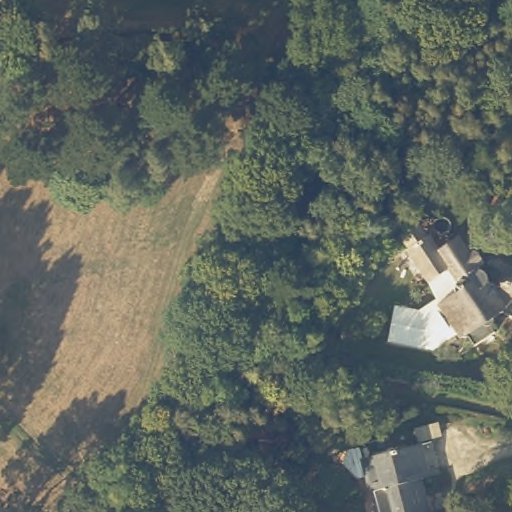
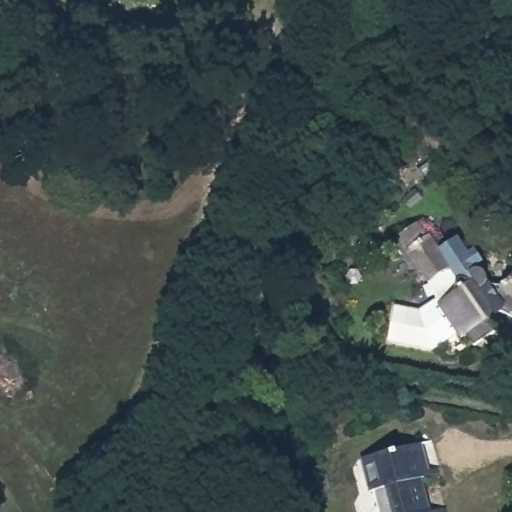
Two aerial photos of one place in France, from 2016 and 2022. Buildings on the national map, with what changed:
unchanged [(492,299),(490,306),(492,312),(489,314),(494,324),(473,339),(465,328),(460,332),(438,299),(454,288),(450,282),(457,277),(448,263),(426,278),(399,242),(403,239),(394,226),(413,213),(421,223),(423,222),(435,242),(448,232),(454,228),(465,242),(468,240),(477,253),(471,257),(477,267),(480,264),(482,273),(496,279),(501,275),(507,275),(511,266),(512,263),(512,307),(510,311),(492,299)]
unchanged [(436,460),(438,470),(415,475),(421,510),(441,506),(441,512),(383,512),(377,483),(369,485),(363,449),(422,438),(426,462),(436,460)]

